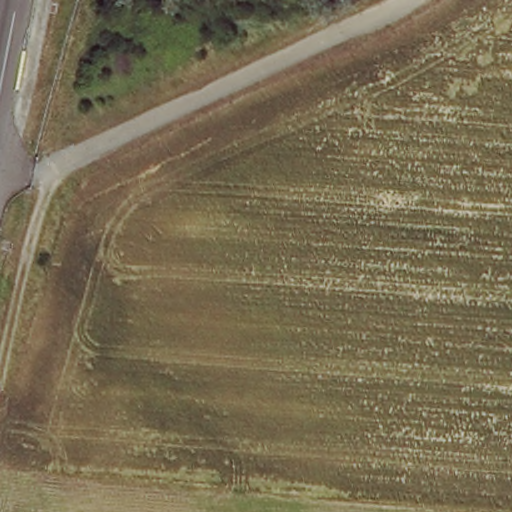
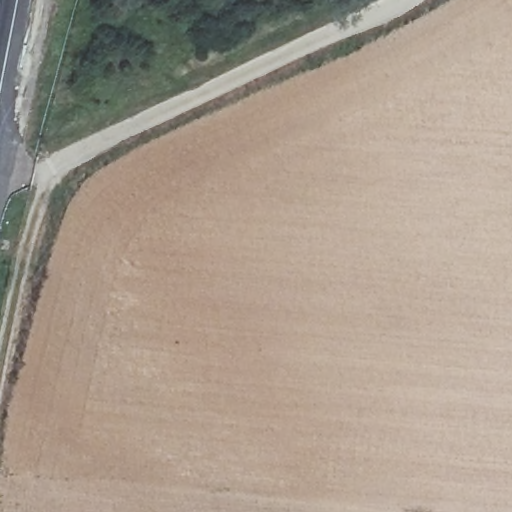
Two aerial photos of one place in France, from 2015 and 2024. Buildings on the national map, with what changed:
[]

